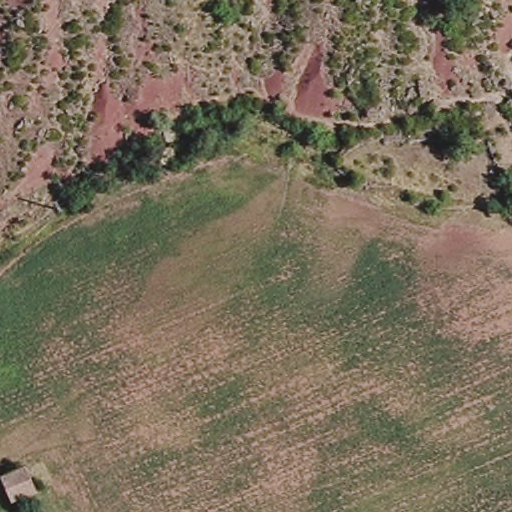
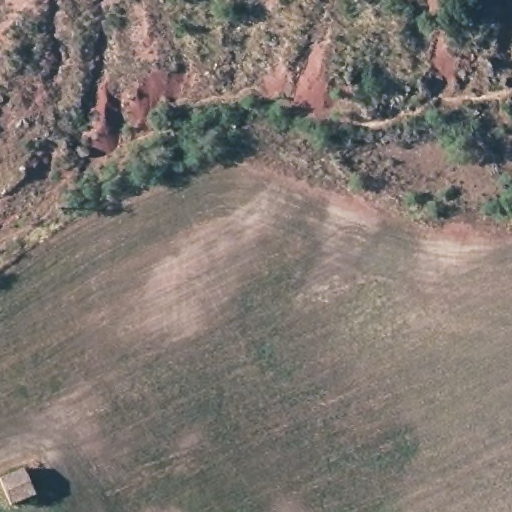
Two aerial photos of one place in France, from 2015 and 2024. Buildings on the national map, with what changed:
unchanged [(37,486),(14,503),(0,485),(0,482),(21,465),(23,466),(37,486)]

